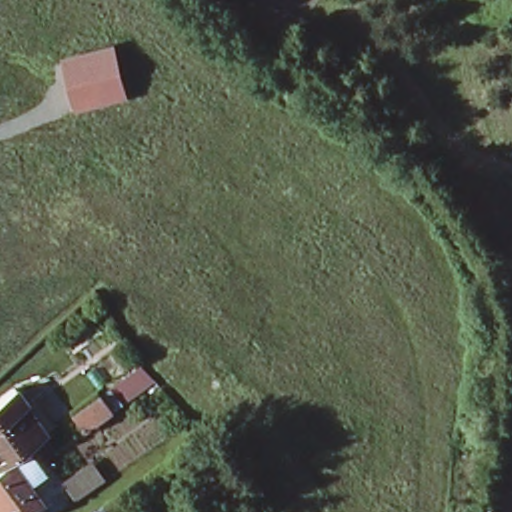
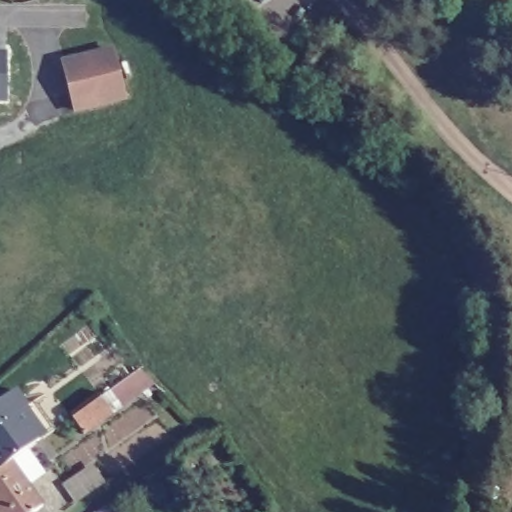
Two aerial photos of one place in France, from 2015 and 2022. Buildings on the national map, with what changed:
new [(10,105),(0,104),(0,49),(6,50),(10,105)]
unchanged [(75,115),(61,61),(115,49),(130,102),(75,115)]
unchanged [(157,388),(86,436),(75,416),(142,367),(157,388)]
unchanged [(28,402),(21,407),(41,436),(35,441),(50,462),(29,477),(27,475),(23,478),(42,504),(31,512),(0,512),(0,399),(17,387),(28,402)]

